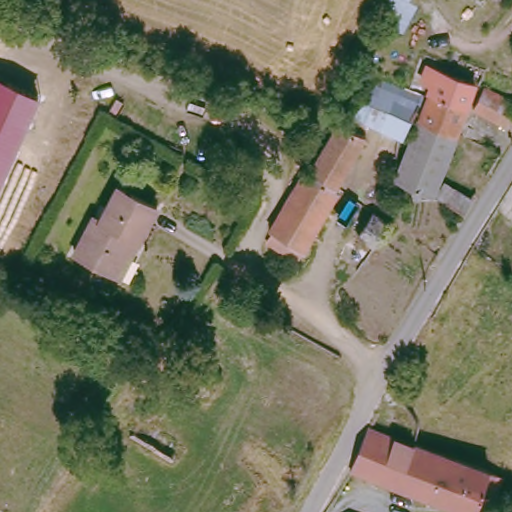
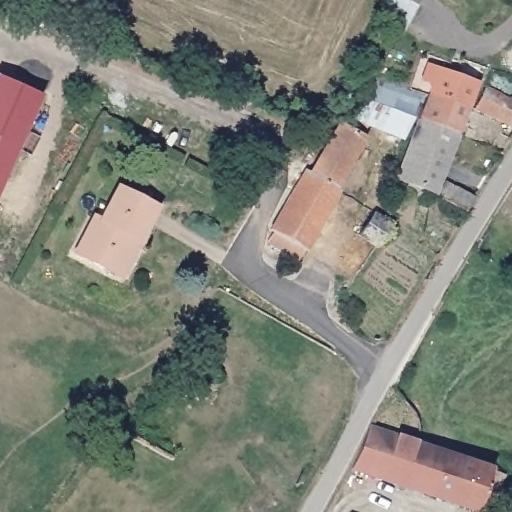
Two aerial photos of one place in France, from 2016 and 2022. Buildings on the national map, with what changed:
unchanged [(390,0),(419,0),(402,31),(380,19),(390,0)]
unchanged [(434,190),(422,185),(420,190),(417,192),(412,192),(410,192),(408,190),(406,187),(406,186),(407,184),(409,180),(396,175),(433,80),(422,76),(428,61),(475,78),(467,102),(468,102),(457,129),(437,182),(434,190)]
unchanged [(401,134),(368,119),(363,130),(366,132),(336,184),(339,186),(304,247),(302,246),(296,256),(268,238),(274,228),(270,225),(306,165),(311,168),(340,117),(342,119),(343,117),(369,72),(425,92),(402,134),(401,134)]
unchanged [(41,97),(0,187),(0,78),(41,97)]
unchanged [(484,82),(512,96),(512,122),(473,104),(484,82)]
unchanged [(94,209),(99,212),(117,180),(160,202),(140,240),(141,240),(122,277),(72,250),(94,209)]
unchanged [(374,247),(358,235),(374,213),(390,225),(375,247),(374,247)]
unchanged [(428,496),(351,469),(359,449),(368,427),(416,444),(442,453),(428,496)]
unchanged [(479,502),(476,512),(428,496),(442,453),(490,471),(494,472),(499,476),(500,480),(500,483),(499,486),(496,488),(494,489),(491,490),(486,506),(479,502)]

